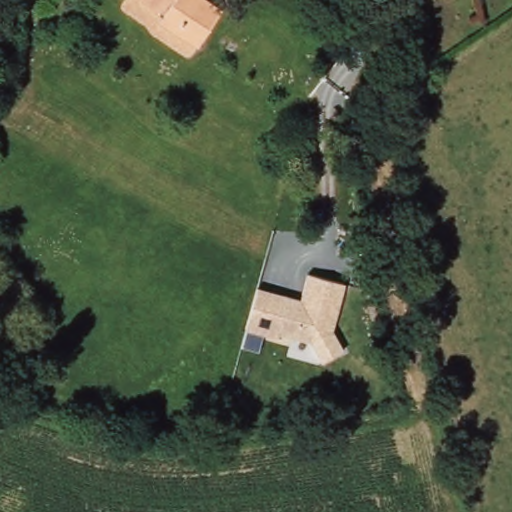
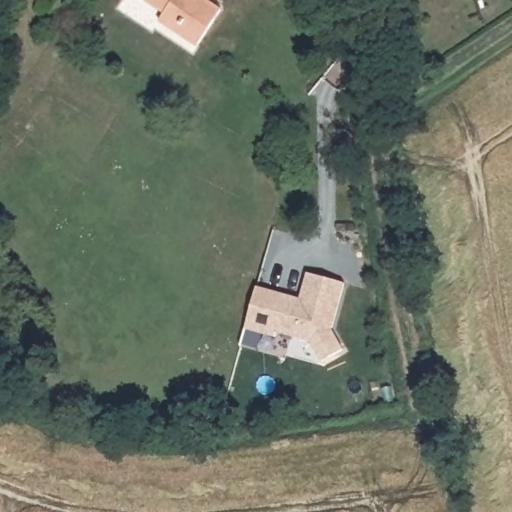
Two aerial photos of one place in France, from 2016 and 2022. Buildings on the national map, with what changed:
unchanged [(223,11),(199,46),(161,21),(164,14),(144,0),(207,0),(223,11)]
unchanged [(302,302),(311,272),(345,285),(330,332),(343,351),(316,370),(301,341),(278,334),(275,341),(248,333),(258,288),(302,302)]

